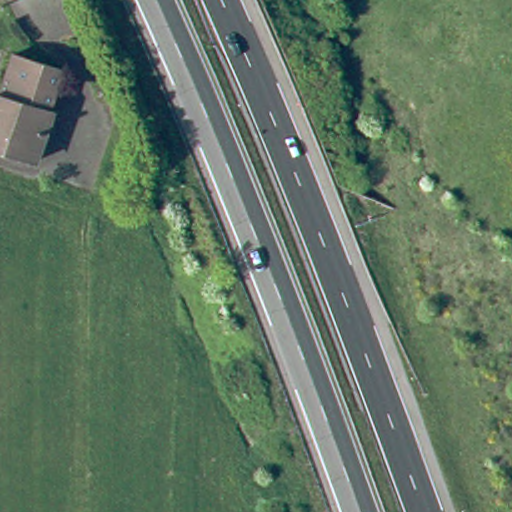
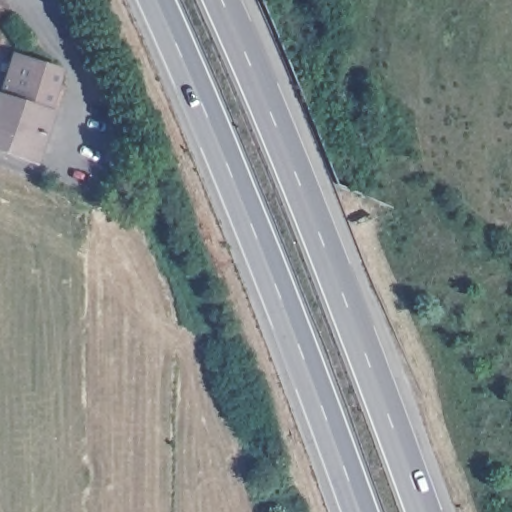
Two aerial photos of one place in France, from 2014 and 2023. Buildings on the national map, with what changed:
unchanged [(17,154),(0,148),(0,93),(2,94),(18,53),(65,70),(50,108),(55,110),(52,120),(45,135),(38,155),(35,160),(17,154)]

